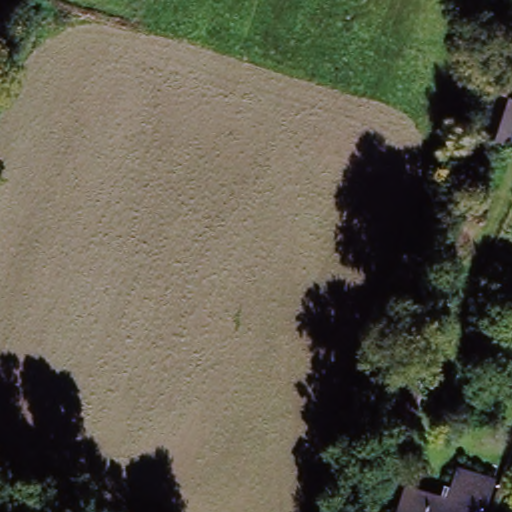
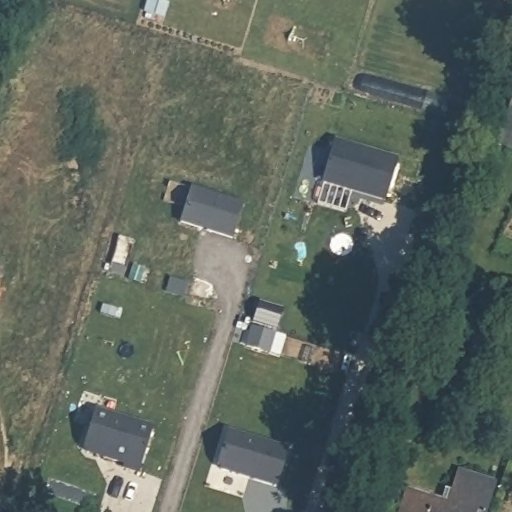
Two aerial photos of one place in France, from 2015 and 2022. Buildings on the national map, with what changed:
unchanged [(493,102),(512,107),(512,134),(506,150),(482,144),(493,102)]
new [(396,160),(384,200),(320,180),(332,140),(396,160)]
new [(189,182),(237,198),(226,232),(178,216),(189,182)]
new [(86,404),(145,422),(131,466),(115,461),(116,457),(78,446),(75,440),(86,404)]
new [(220,425),(280,445),(269,482),(214,464),(210,458),(220,425)]
unchanged [(407,491),(443,502),(446,491),(451,492),(458,470),(496,483),(488,512),(400,512),(407,491)]

